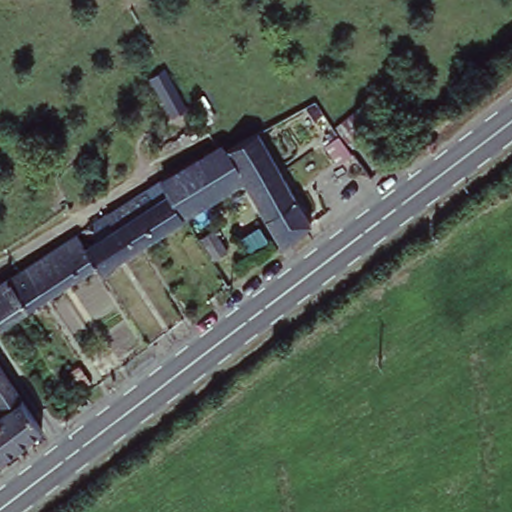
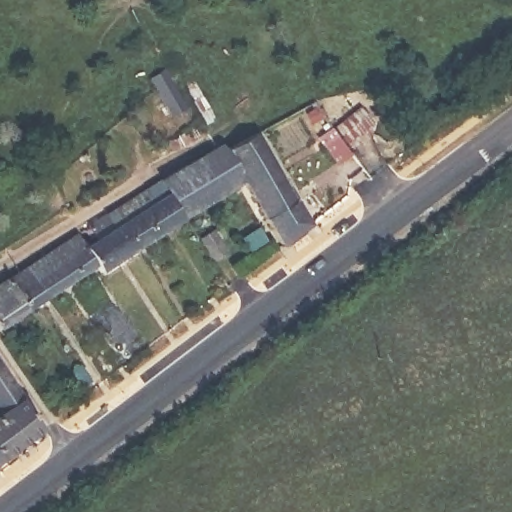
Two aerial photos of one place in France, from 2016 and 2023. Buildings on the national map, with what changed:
unchanged [(163,71),(185,107),(170,115),(149,80),(163,71)]
unchanged [(314,100),(319,106),(313,109),(309,103),(314,100)]
unchanged [(285,243),(283,245),(239,184),(237,185),(228,147),(258,131),(312,224),(285,243)]
unchanged [(337,160),(326,144),(340,134),(352,150),(337,160)]
unchanged [(94,240),(85,228),(116,208),(135,197),(154,185),(163,179),(216,146),(223,150),(228,147),(237,185),(187,216),(185,216),(177,221),(158,233),(139,245),(100,269),(97,264),(85,246),(94,240)]
unchanged [(214,228),(227,248),(216,256),(203,235),(214,228)]
unchanged [(27,265),(70,237),(76,233),(85,246),(97,264),(48,296),(30,307),(0,327),(0,282),(9,276),(27,265)]
unchanged [(0,408),(0,374),(15,397),(0,408)]
unchanged [(38,431),(6,456),(0,460),(0,413),(18,400),(38,431)]

